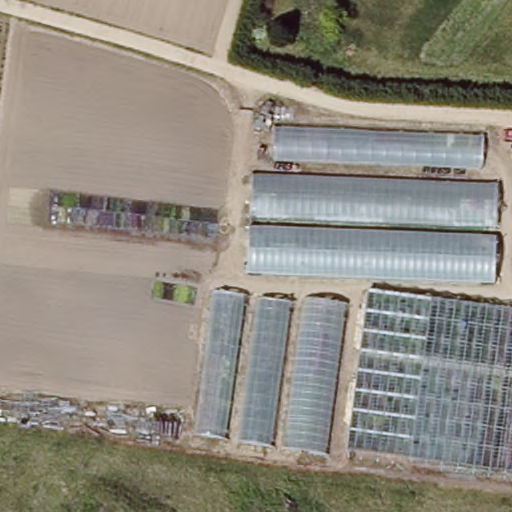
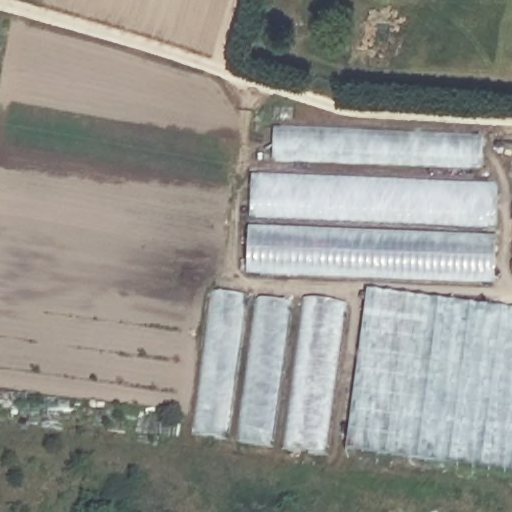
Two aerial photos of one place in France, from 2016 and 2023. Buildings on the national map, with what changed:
unchanged [(364,309),(371,278),(304,277),(251,277),(248,170),(277,168),(276,126),(483,134),(484,182),(499,182),(494,301),(512,305),(512,480),(292,450),(306,302),(364,309)]
unchanged [(512,147),(512,223),(506,222),(511,147),(512,147)]

